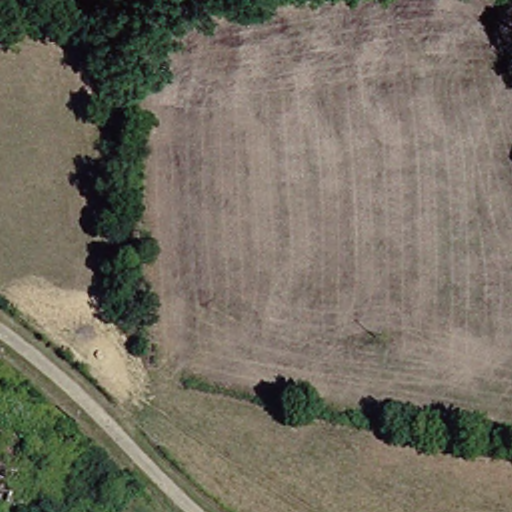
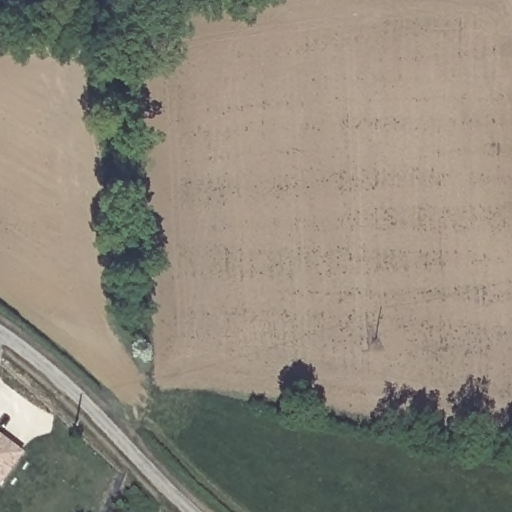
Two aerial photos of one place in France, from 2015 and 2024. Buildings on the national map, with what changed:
new [(6,440),(0,446),(0,435),(6,440)]
new [(6,440),(22,454),(0,480),(0,446),(6,440)]
unchanged [(137,512),(131,512),(132,511),(137,512)]

